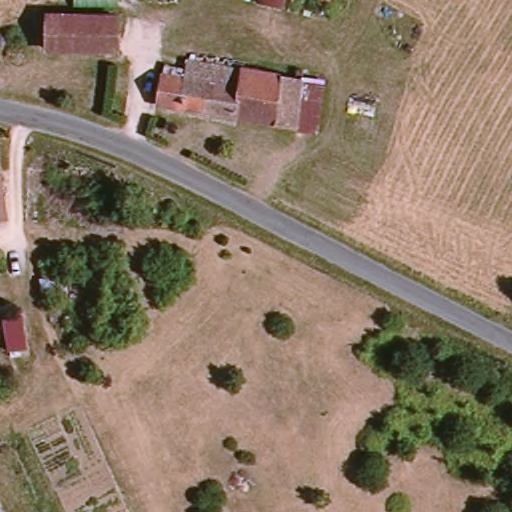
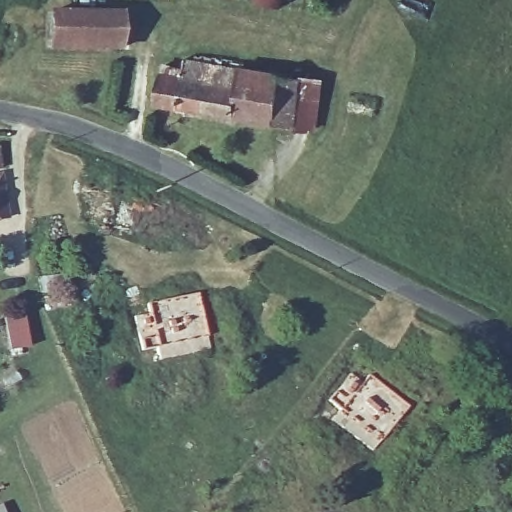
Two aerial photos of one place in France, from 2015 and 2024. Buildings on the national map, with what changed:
unchanged [(70,8),(70,0),(118,0),(118,8),(70,8)]
unchanged [(114,11),(113,45),(43,45),(43,10),(114,11)]
unchanged [(189,81),(191,65),(308,81),(300,131),(167,111),(171,78),(189,81)]
demolished [(368,140),(338,136),(343,92),(374,95),(368,140)]
new [(136,315),(150,311),(148,301),(198,291),(209,348),(160,358),(157,346),(143,350),(136,315)]
new [(352,370),(364,380),(371,372),(409,405),(373,450),(334,418),(342,408),(330,398),(352,370)]
new [(0,505),(6,512),(0,512),(0,505)]

